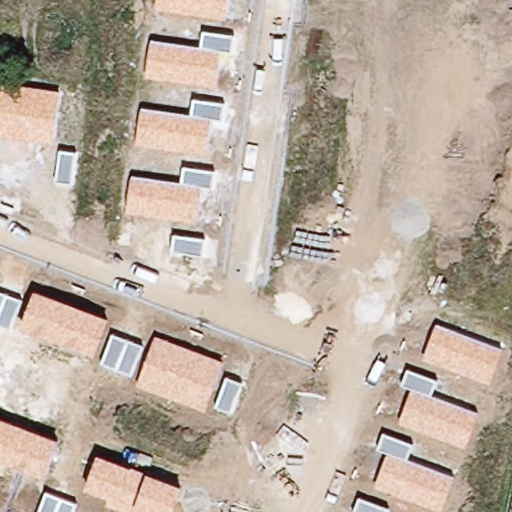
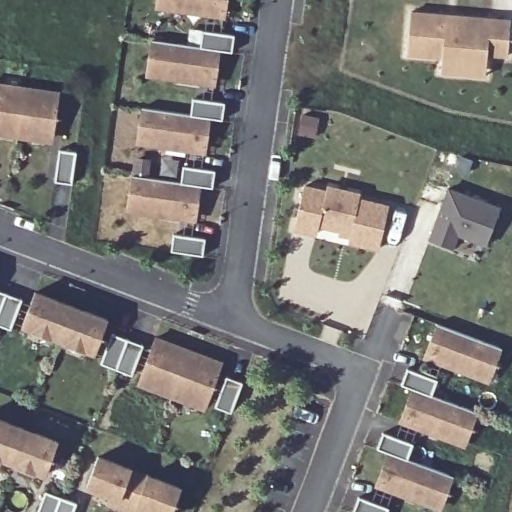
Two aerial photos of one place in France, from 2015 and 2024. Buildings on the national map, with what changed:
unchanged [(226,19),(156,9),(157,0),(228,0),(226,19)]
new [(511,19),(508,59),(487,56),(486,77),(441,74),(442,60),(407,57),(411,11),(511,19)]
unchanged [(201,48),(203,32),(234,36),(232,53),(221,51),(216,89),(146,77),(151,40),(201,48)]
unchanged [(60,91),(52,144),(0,137),(0,82),(60,91)]
unchanged [(191,116),(194,100),(224,104),(222,121),(212,120),(207,154),(137,144),(141,109),(191,116)]
unchanged [(182,184),(184,167),(215,172),(212,189),(202,187),(197,222),(127,211),(132,176),(182,184)]
new [(305,187),(327,193),(328,188),(361,196),(359,201),(389,208),(379,250),(349,242),(352,234),(319,226),(317,235),(295,230),(305,187)]
new [(449,190),(501,209),(487,246),(458,235),(452,249),(430,241),(449,190)]
new [(174,235),(206,239),(203,256),(172,251),(174,235)]
unchanged [(109,318),(96,356),(21,328),(35,290),(109,318)]
new [(11,330),(0,325),(0,291),(7,294),(22,300),(11,330)]
unchanged [(502,349),(490,385),(423,359),(436,325),(502,349)]
new [(132,375),(117,370),(101,363),(112,333),(128,340),(144,345),(132,375)]
unchanged [(223,361),(205,412),(137,386),(156,335),(223,361)]
unchanged [(437,381),(432,396),(477,413),(465,447),(400,423),(412,390),(401,385),(407,368),(437,381)]
new [(226,379),(242,385),(232,413),(215,407),(226,379)]
unchanged [(57,440),(44,477),(0,461),(0,418),(57,440)]
unchanged [(408,460),(455,477),(442,512),(441,512),(376,487),(387,453),(377,450),(382,433),(413,445),(408,460)]
unchanged [(173,512),(123,512),(107,505),(110,497),(85,488),(97,455),(182,487),(173,512)]
new [(39,512),(47,492),(62,498),(77,503),(74,512),(39,512)]
unchanged [(388,512),(353,512),(359,496),(390,508),(388,512)]

